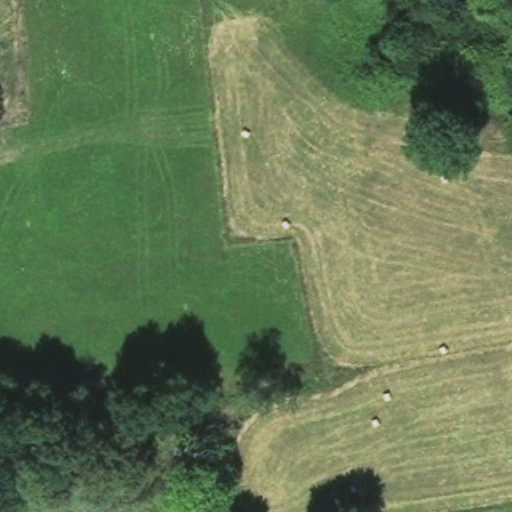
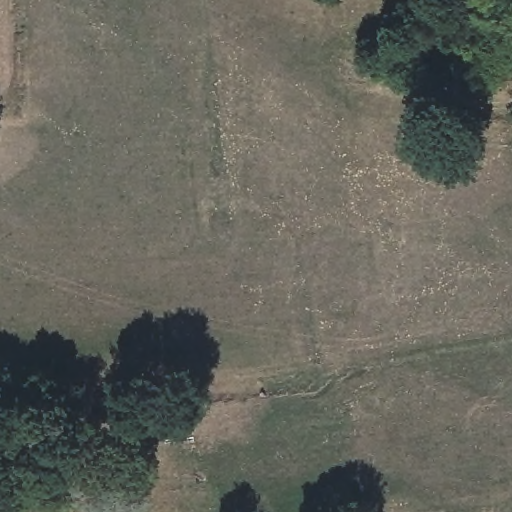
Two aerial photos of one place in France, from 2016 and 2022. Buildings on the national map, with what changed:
unchanged [(39,458),(11,457),(10,424),(41,424),(39,458)]

